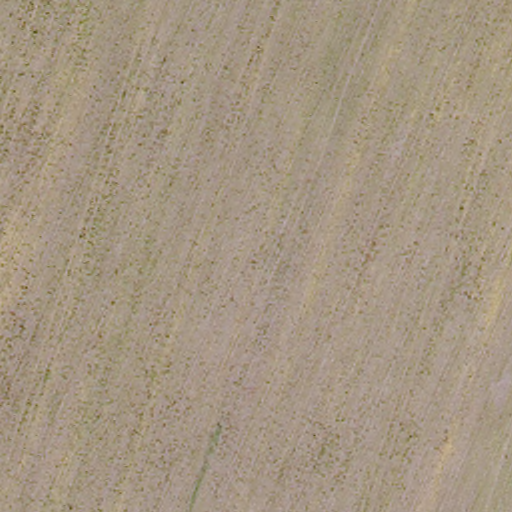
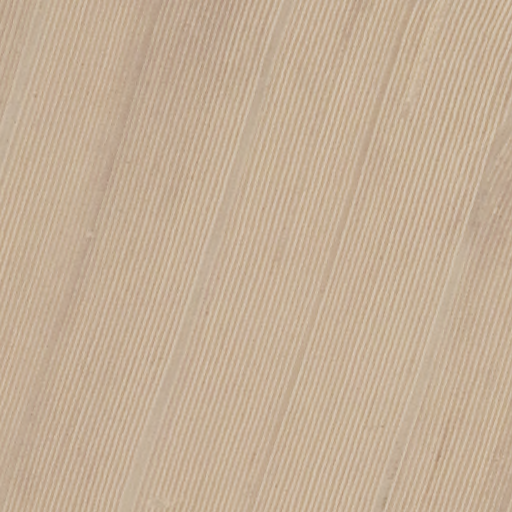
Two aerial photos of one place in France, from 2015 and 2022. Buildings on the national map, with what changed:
[]

